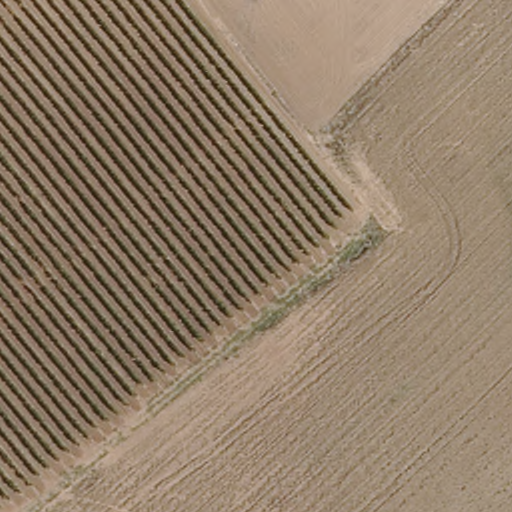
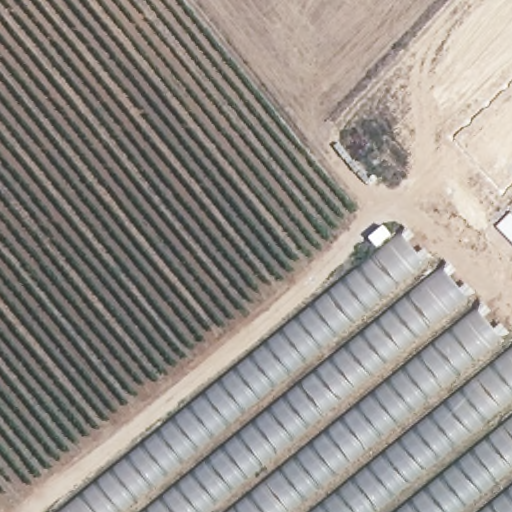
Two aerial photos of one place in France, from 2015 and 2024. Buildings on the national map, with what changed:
new [(476,0),(512,0),(512,291),(348,136),(476,0)]
new [(402,233),(435,276),(443,269),(510,352),(512,350),(512,512),(62,512),(402,233)]

